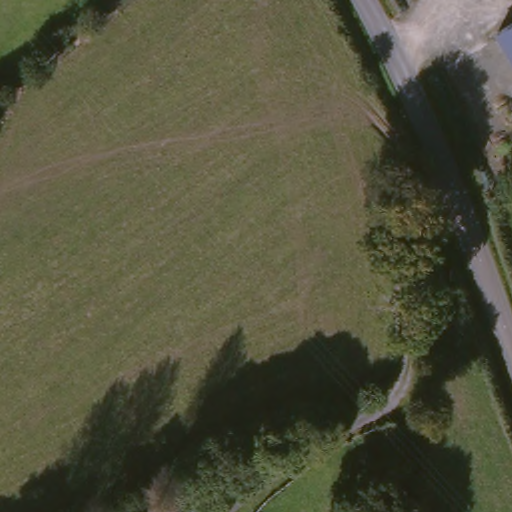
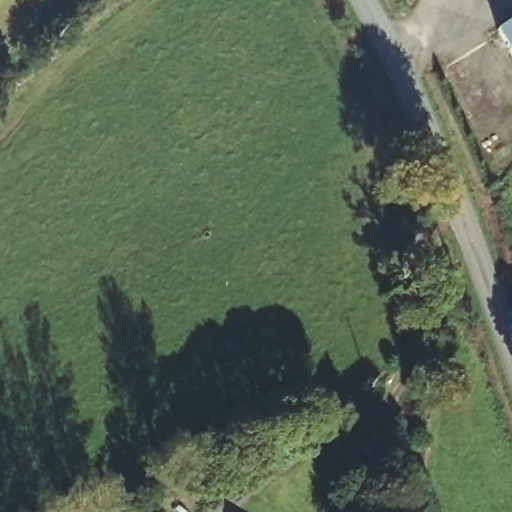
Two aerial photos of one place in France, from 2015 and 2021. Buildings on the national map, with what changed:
unchanged [(512,30),(512,67),(495,40),(512,30)]

